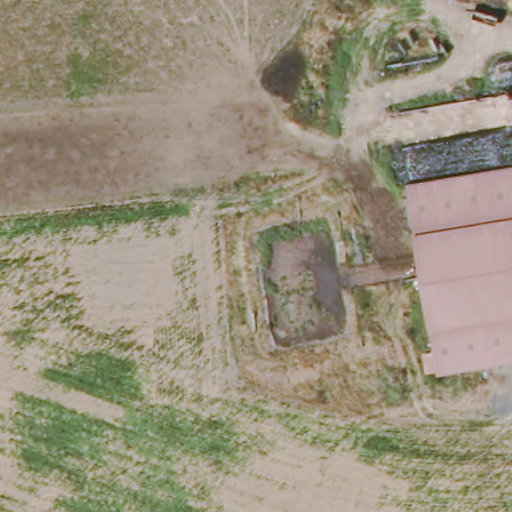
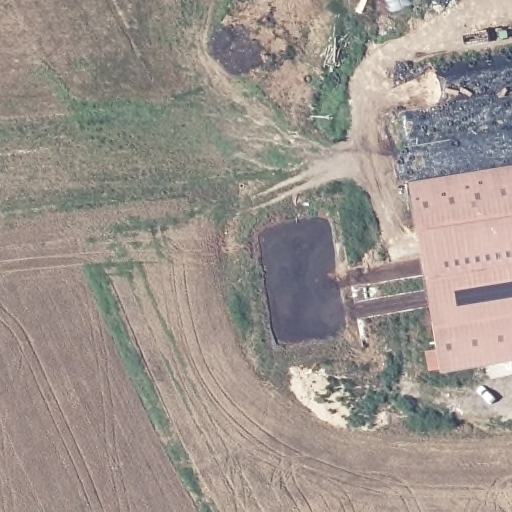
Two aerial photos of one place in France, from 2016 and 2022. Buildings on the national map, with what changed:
unchanged [(426,369),(423,349),(433,347),(430,323),(415,230),(406,181),(512,164),(512,359),(437,372),(436,368),(426,369)]

